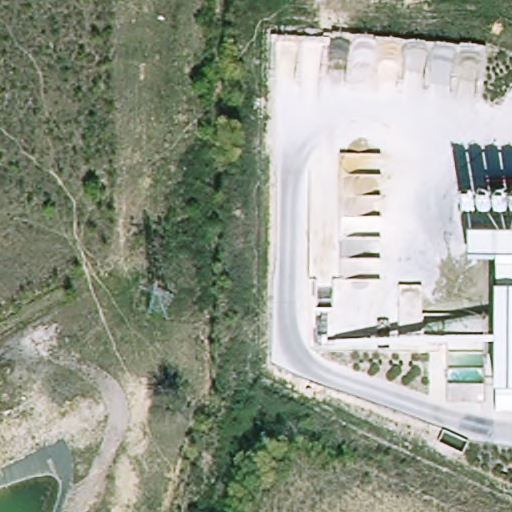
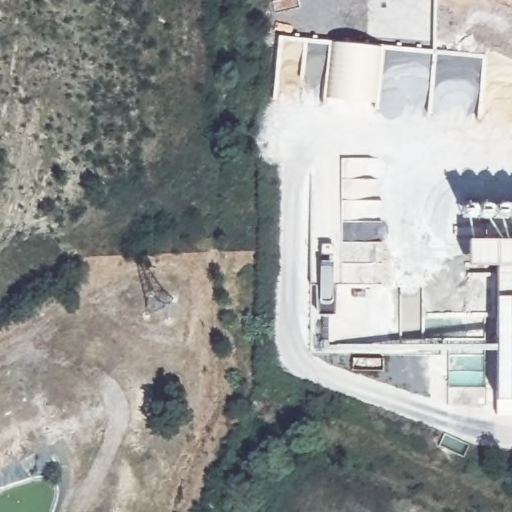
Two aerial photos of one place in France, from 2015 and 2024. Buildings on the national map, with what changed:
new [(505,1),(505,0),(512,0),(505,1)]
new [(374,104),(326,98),(332,42),(380,47),(374,104)]
unchanged [(512,239),(512,262),(493,262),(465,262),(465,239),(512,239)]
unchanged [(492,414),(493,262),(512,262),(512,414),(492,414)]

